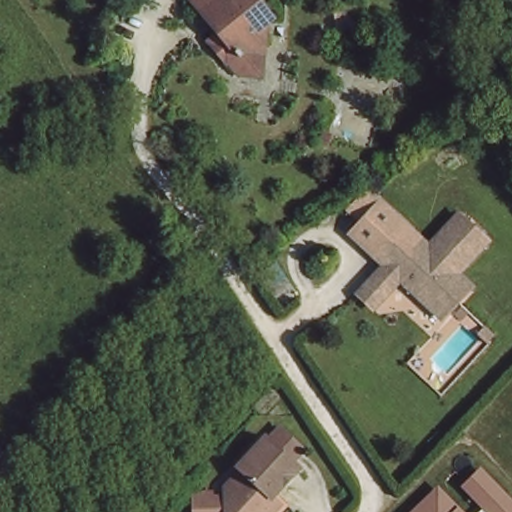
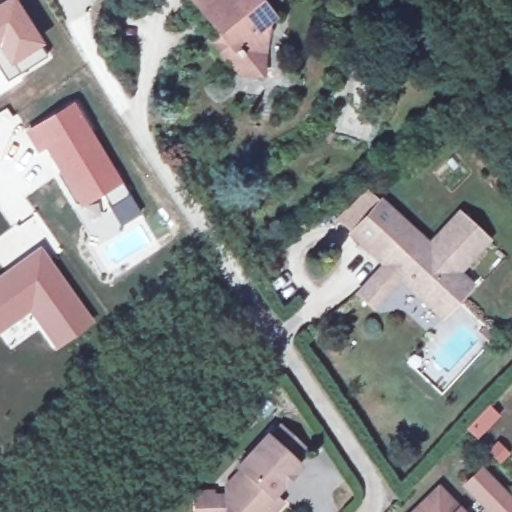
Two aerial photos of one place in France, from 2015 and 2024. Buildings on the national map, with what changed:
new [(42,42),(38,45),(45,55),(6,80),(0,69),(0,0),(17,0),(42,42)]
unchanged [(231,81),(202,42),(213,34),(187,0),(261,0),(278,20),(265,30),(261,81),(231,81)]
new [(73,101),(140,213),(122,225),(103,195),(80,209),(43,150),(37,154),(22,131),(73,101)]
unchanged [(353,296),(378,270),(347,229),(381,191),(435,240),(457,212),(491,246),(460,277),(474,292),(439,327),(400,288),(371,315),(353,296)]
new [(40,245),(93,318),(56,348),(28,313),(0,334),(0,273),(40,245)]
unchanged [(239,471),(233,467),(267,433),(306,469),(275,502),(283,510),(281,512),(223,512),(223,487),(239,471)]
unchanged [(460,487),(481,467),(512,499),(512,512),(478,512),(481,509),(460,487)]
unchanged [(463,512),(411,512),(437,486),(463,512)]
unchanged [(223,487),(223,512),(190,512),(190,487),(223,487)]

